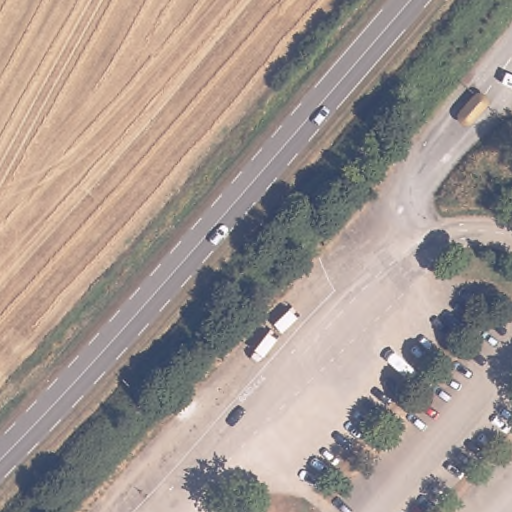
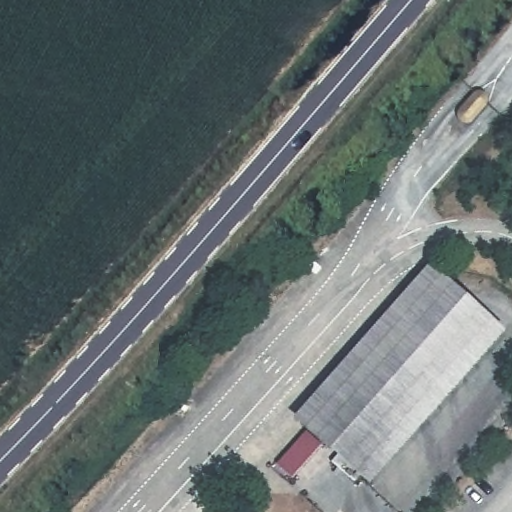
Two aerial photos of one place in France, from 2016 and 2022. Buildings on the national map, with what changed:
new [(306,418),(435,271),(495,324),(366,472),(358,481),(331,458),(341,450),(306,418)]

